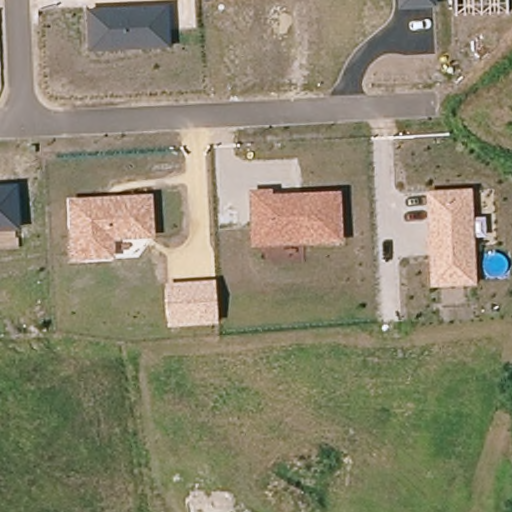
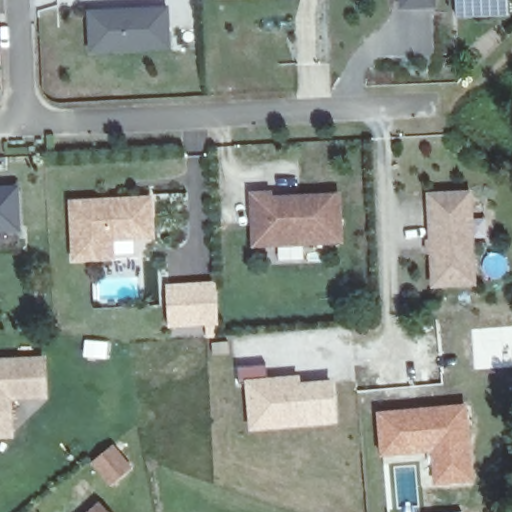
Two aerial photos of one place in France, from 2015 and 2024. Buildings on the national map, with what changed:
unchanged [(436,7),(399,9),(398,0),(436,0),(436,7)]
new [(508,11),(457,14),(456,0),(508,0),(508,11)]
unchanged [(87,12),(168,7),(169,49),(89,51),(87,12)]
unchanged [(14,238),(19,238),(20,246),(0,249),(0,185),(18,185),(19,230),(14,238)]
unchanged [(341,191),(343,242),(251,247),(249,191),(275,189),(274,194),(341,191)]
unchanged [(486,217),(486,237),(473,239),(476,286),(430,288),(424,192),(472,191),(473,219),(486,217)]
unchanged [(153,194),(154,240),(113,240),(114,257),(72,260),(70,199),(153,194)]
unchanged [(166,285),(215,281),(216,324),(168,327),(166,285)]
new [(265,364),(266,377),(299,375),(300,381),(334,379),(338,422),(249,430),(245,380),(239,381),(238,366),(265,364)]
unchanged [(0,438),(0,366),(35,366),(45,398),(9,400),(10,420),(11,437),(0,438)]
new [(466,402),(475,481),(432,485),(429,452),(380,456),(375,410),(466,402)]
unchanged [(111,448),(130,471),(111,487),(92,463),(111,448)]
unchanged [(107,512),(92,512),(100,505),(107,512)]
new [(463,512),(442,512),(462,510),(463,512)]

